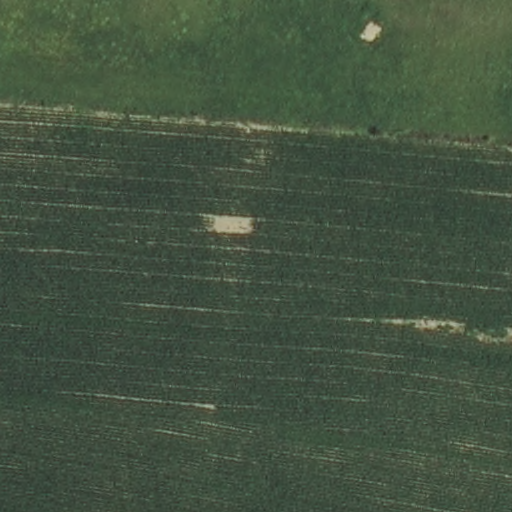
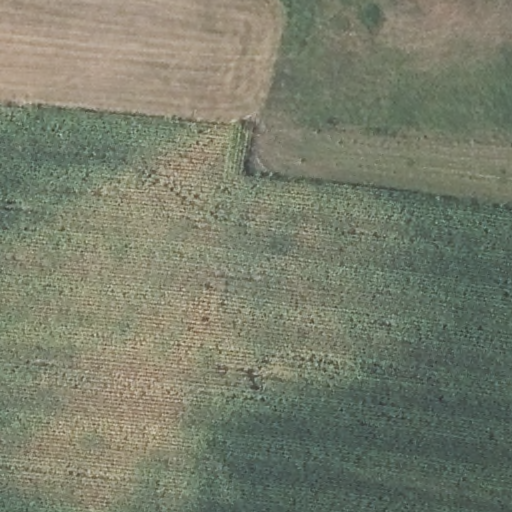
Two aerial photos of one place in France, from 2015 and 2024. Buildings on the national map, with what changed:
[]

